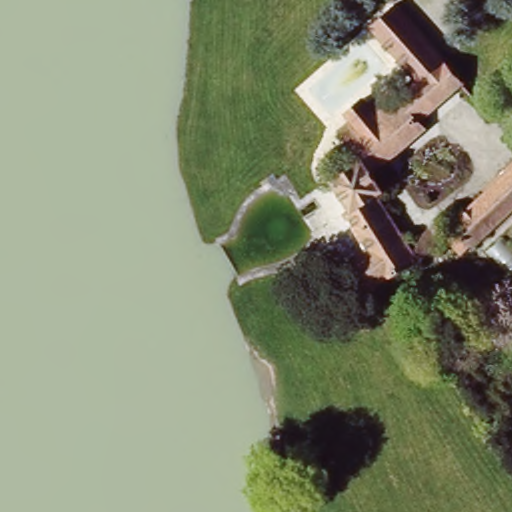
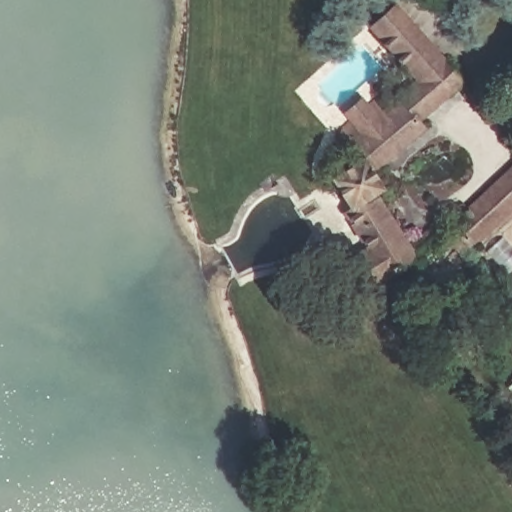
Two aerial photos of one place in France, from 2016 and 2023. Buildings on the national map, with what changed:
unchanged [(439,62),(420,76),(375,20),(398,0),(402,0),(470,75),(457,83),(439,62)]
unchanged [(466,92),(423,124),(428,130),(377,176),(389,195),(410,244),(442,214),(450,224),(512,163),(512,219),(465,262),(444,241),(415,263),(362,300),(332,254),(358,240),(329,176),(357,159),(342,139),(439,62),(457,83),(466,92)]

